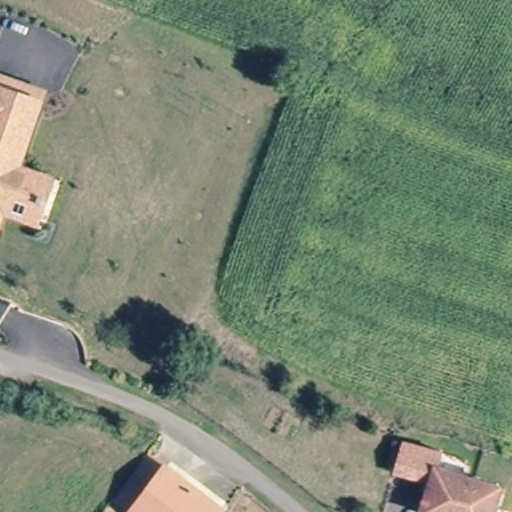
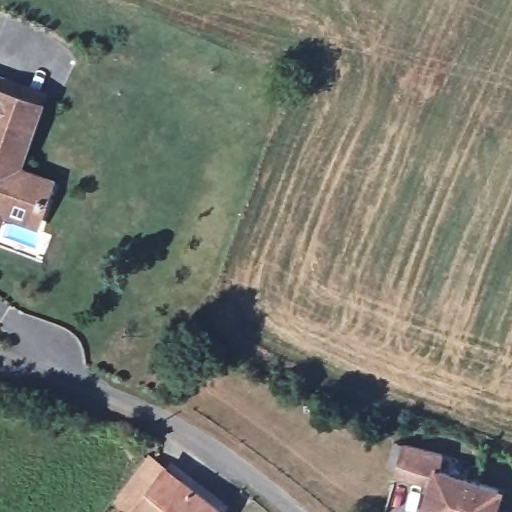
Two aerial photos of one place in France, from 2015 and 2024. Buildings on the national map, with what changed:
unchanged [(36,106),(15,170),(43,180),(41,189),(40,194),(43,195),(36,214),(32,213),(31,219),(2,210),(1,218),(0,220),(0,81),(40,93),(36,106)]
unchanged [(423,512),(432,485),(397,474),(405,445),(442,454),(440,471),(500,489),(494,512),(423,512)]
unchanged [(136,512),(127,504),(155,466),(213,512),(136,512)]

